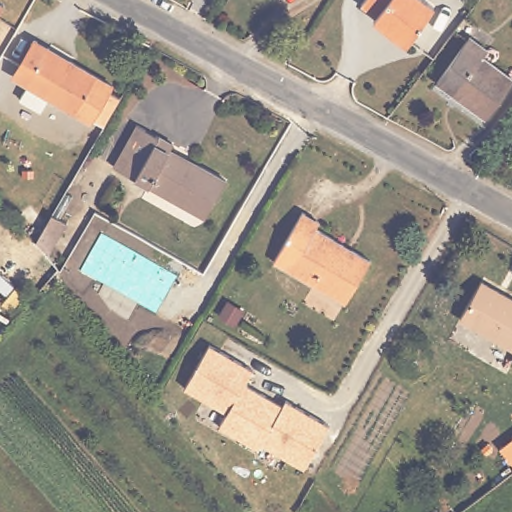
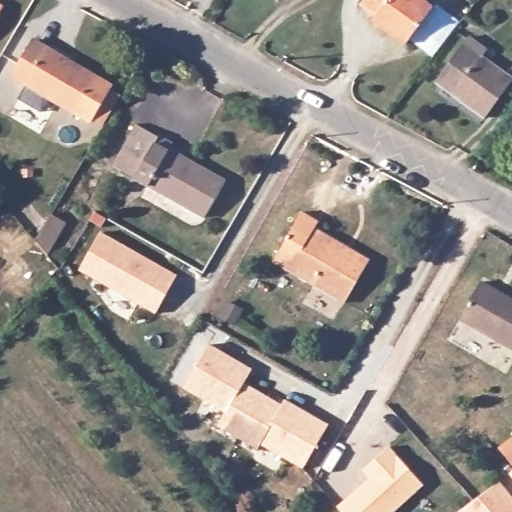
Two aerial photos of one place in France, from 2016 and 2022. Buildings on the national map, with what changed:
unchanged [(375,13),(379,8),(366,0),(434,0),(436,2),(408,39),(375,13)]
unchanged [(512,77),(486,113),(438,76),(471,30),(486,41),(480,50),(512,73),(512,77)]
unchanged [(104,123),(89,115),(42,89),(34,104),(11,92),(19,78),(7,72),(26,36),(105,78),(121,87),(104,123)]
unchanged [(181,141),(176,150),(225,187),(200,222),(125,162),(114,152),(124,140),(146,112),(181,141)]
unchanged [(320,228),(372,259),(346,303),(273,259),(302,209),(322,221),(320,228)]
unchanged [(27,237),(37,217),(52,225),(43,243),(34,261),(27,254),(27,237)]
unchanged [(80,272),(101,232),(177,275),(156,314),(80,272)]
unchanged [(490,284),(512,299),(512,348),(467,319),(490,284)]
unchanged [(252,371),(245,385),(283,407),(285,403),(326,427),(305,467),(260,444),(256,452),(219,429),(225,415),(184,393),(209,345),(252,371)]
unchanged [(512,358),(512,359),(511,359),(512,358)]
new [(512,464),(500,448),(512,437),(512,464)]
new [(363,470),(390,445),(426,485),(396,512),(342,512),(337,506),(369,477),(363,470)]
new [(512,472),(512,476),(510,474),(512,472)]
new [(512,495),(512,512),(461,512),(500,480),(512,495)]

